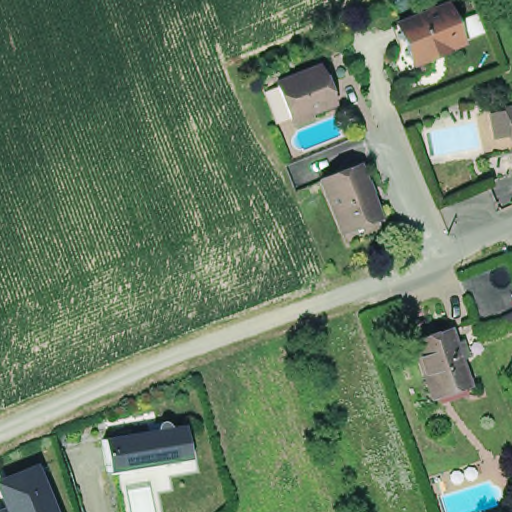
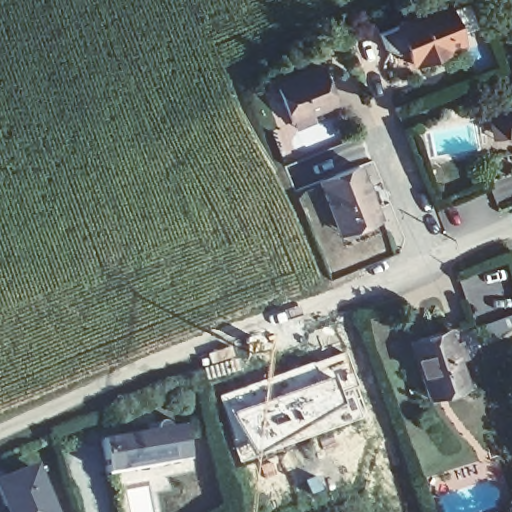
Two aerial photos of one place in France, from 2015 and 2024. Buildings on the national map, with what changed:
unchanged [(402,30),(451,10),(466,49),(453,54),(454,57),(422,70),(421,66),(417,68),(402,30)]
unchanged [(298,122),(296,123),(285,128),(269,91),(281,87),(325,68),(340,105),(315,115),(318,121),(300,129),(298,122)]
unchanged [(512,114),(512,143),(511,143),(506,115),(512,114)]
unchanged [(325,187),(366,172),(383,220),(385,225),(344,240),(343,235),(325,187)]
unchanged [(454,335),(471,385),(433,398),(416,347),(454,335)]
new [(294,368),(344,351),(367,416),(304,440),(301,432),(250,456),(218,397),(294,368)]
unchanged [(186,425),(193,461),(112,473),(105,440),(186,425)]
unchanged [(4,510),(0,497),(0,479),(43,462),(58,512),(0,512),(0,511),(4,510)]

